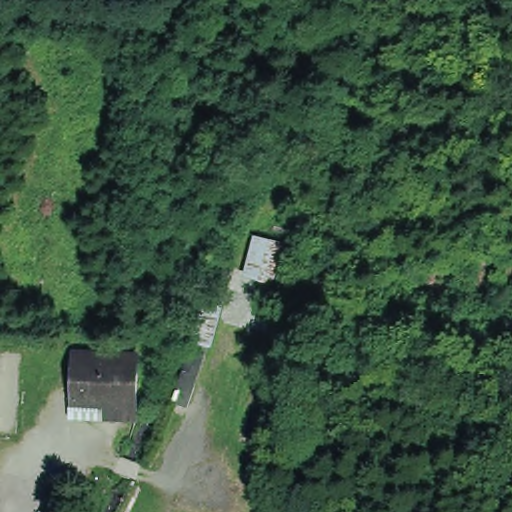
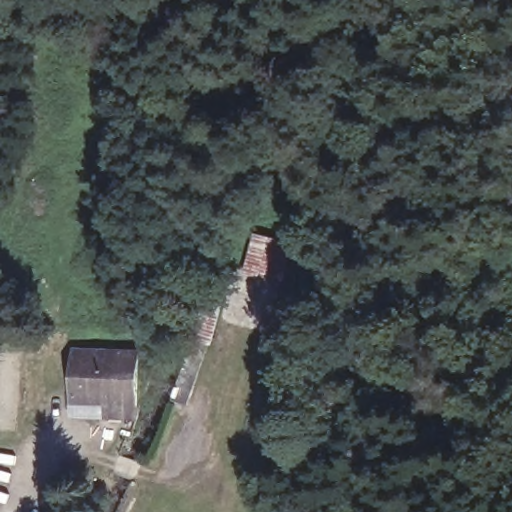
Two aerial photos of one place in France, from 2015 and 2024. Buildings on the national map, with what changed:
unchanged [(244,277),(252,244),(285,251),(277,284),(244,277)]
unchanged [(195,345),(215,268),(234,272),(214,350),(202,348),(183,408),(171,404),(190,343),(195,345)]
unchanged [(107,418),(108,405),(74,403),(75,364),(75,351),(88,352),(138,354),(137,395),(137,407),(136,419),(128,419),(107,418)]

